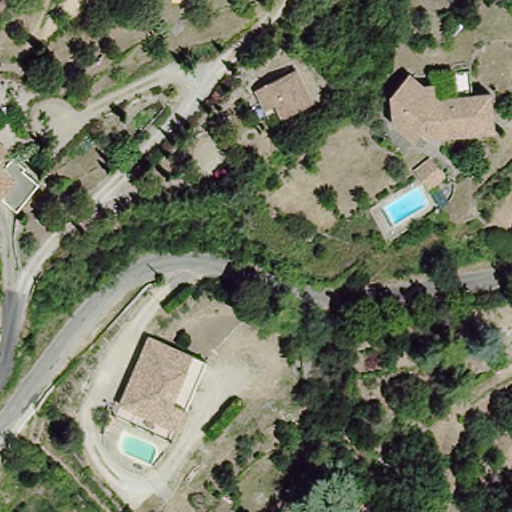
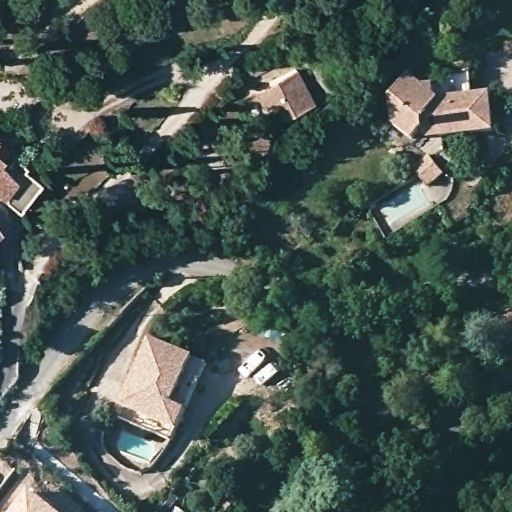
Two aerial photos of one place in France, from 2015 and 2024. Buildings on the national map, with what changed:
unchanged [(420,124),(413,133),(393,116),(391,89),(410,66),(424,76),(435,76),(435,86),(441,91),(473,88),(491,86),(495,124),(441,129),(429,130),(420,124)]
unchanged [(292,76),(308,109),(276,124),(270,112),(260,117),(259,117),(250,98),(292,76)]
unchanged [(8,193),(10,190),(0,181),(0,143),(5,137),(21,151),(34,161),(27,169),(35,175),(40,169),(52,179),(50,182),(65,194),(43,222),(8,193)]
unchanged [(438,146),(450,169),(429,180),(417,158),(438,146)]
unchanged [(6,227),(0,232),(0,222),(6,227)]
unchanged [(147,335),(190,354),(205,363),(180,429),(119,400),(147,335)]
new [(29,487),(60,512),(9,512),(29,487)]

